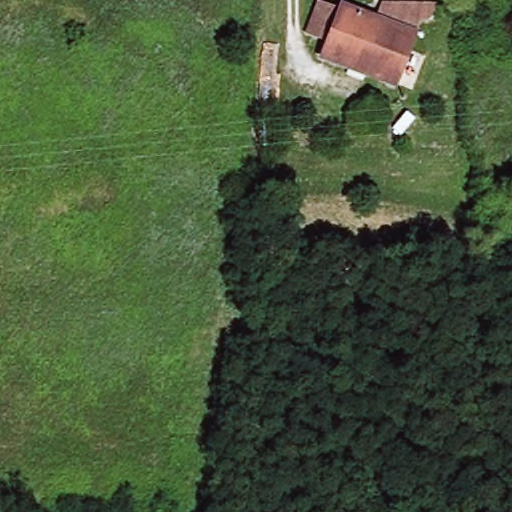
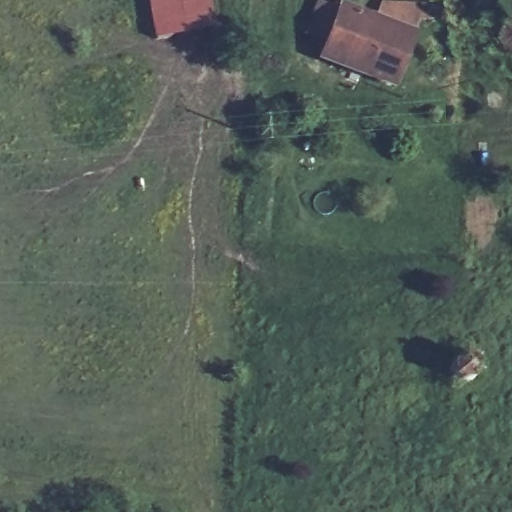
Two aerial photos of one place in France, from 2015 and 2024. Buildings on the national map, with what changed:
new [(148,0),(210,0),(213,28),(155,39),(148,0)]
unchanged [(374,19),(380,5),(437,12),(428,36),(417,31),(393,86),(318,57),(339,5),(374,19)]

